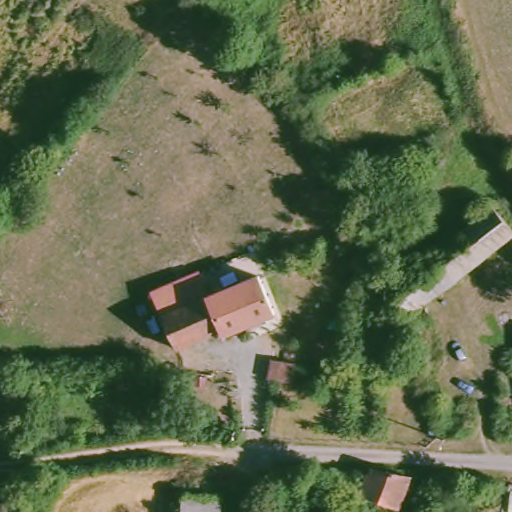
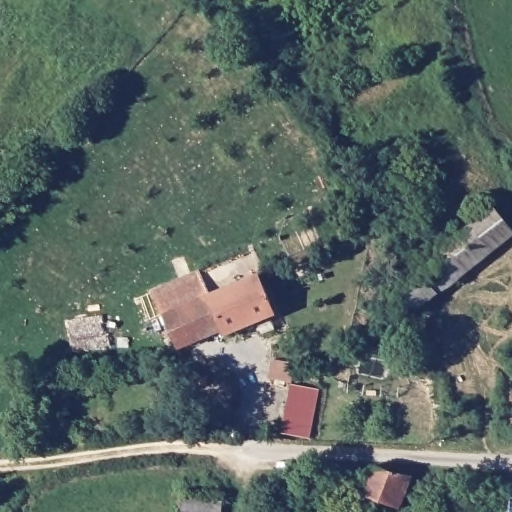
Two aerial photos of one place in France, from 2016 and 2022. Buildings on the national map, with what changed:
unchanged [(326,172),(348,162),(359,187),(354,190),(358,197),(345,204),(326,172)]
unchanged [(393,282),(401,276),(445,242),(447,245),(500,207),(512,222),(512,240),(467,275),(418,312),(393,282)]
unchanged [(284,316),(234,336),(233,331),(187,348),(172,313),(269,275),(284,316)]
new [(288,384),(314,386),(312,436),(286,434),(288,384)]
unchanged [(414,480),(404,511),(366,500),(378,467),(414,480)]
unchanged [(203,499),(226,501),(224,512),(202,512),(203,499)]

